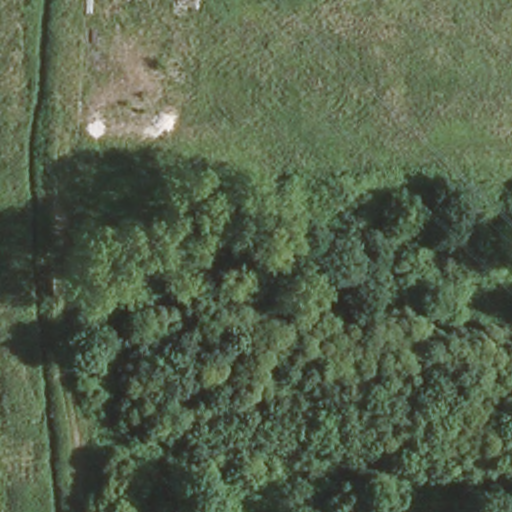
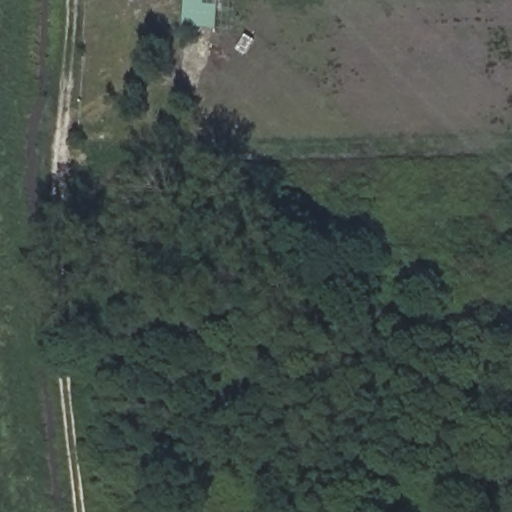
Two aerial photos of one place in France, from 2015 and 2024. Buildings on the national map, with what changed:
unchanged [(140,394),(141,363),(173,366),(172,397),(140,394)]

